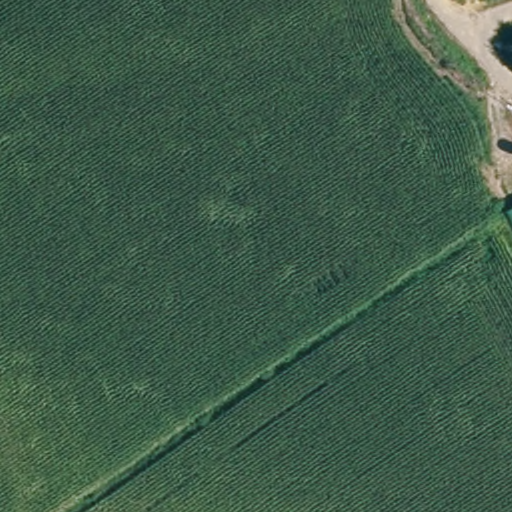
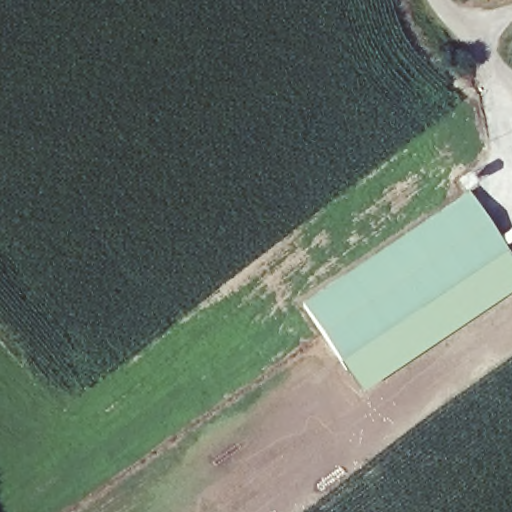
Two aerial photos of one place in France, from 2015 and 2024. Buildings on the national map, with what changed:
new [(340,363),(302,304),(468,193),(508,252),(340,363)]
new [(508,252),(512,258),(512,290),(363,393),(342,362),(508,252)]

